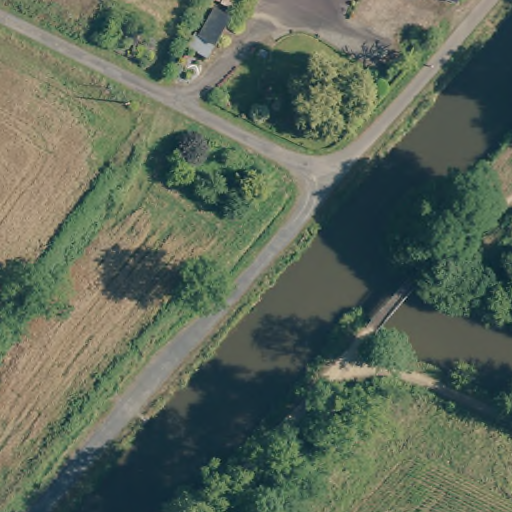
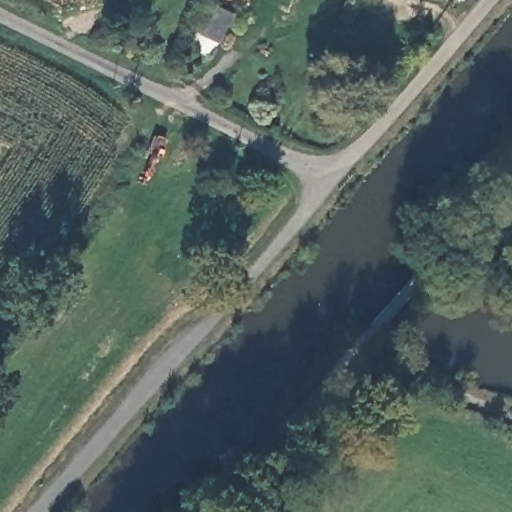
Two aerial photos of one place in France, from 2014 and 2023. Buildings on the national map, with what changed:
unchanged [(256,11),(235,5),(228,0),(260,0),(256,11)]
unchanged [(470,5),(465,4),(453,0),(471,0),(470,5)]
unchanged [(239,89),(243,75),(255,47),(270,52),(257,82),(251,96),(239,89)]

